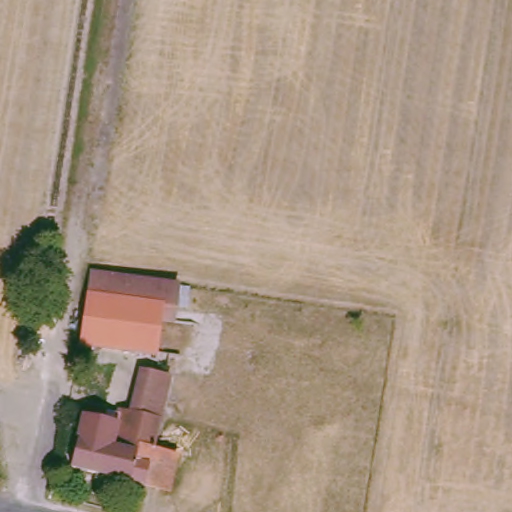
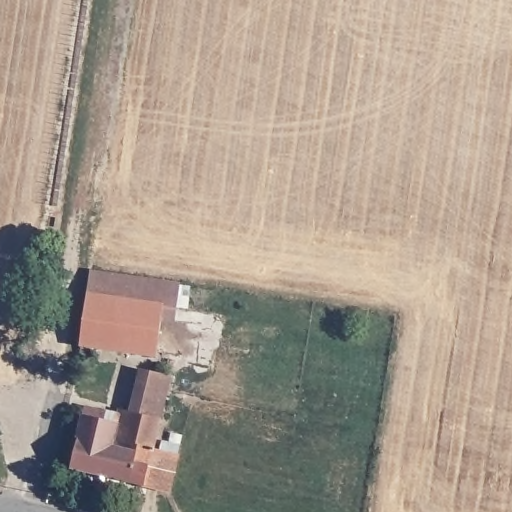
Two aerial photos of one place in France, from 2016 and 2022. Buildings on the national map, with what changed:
unchanged [(85,353),(87,344),(97,272),(184,285),(179,322),(165,320),(161,355),(97,346),(96,356),(85,353)]
unchanged [(77,472),(92,412),(124,419),(125,416),(144,420),(155,378),(175,383),(158,456),(182,461),(174,496),(77,472)]

